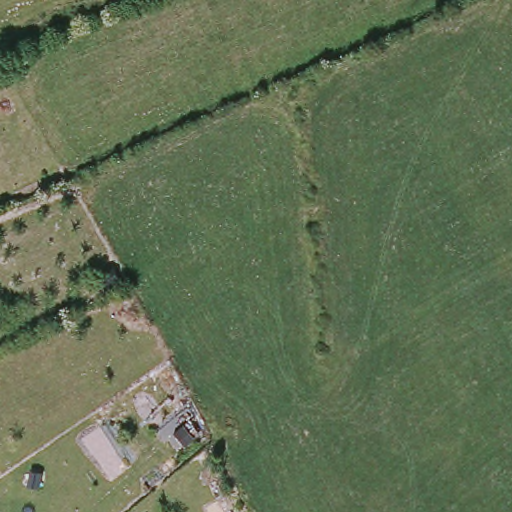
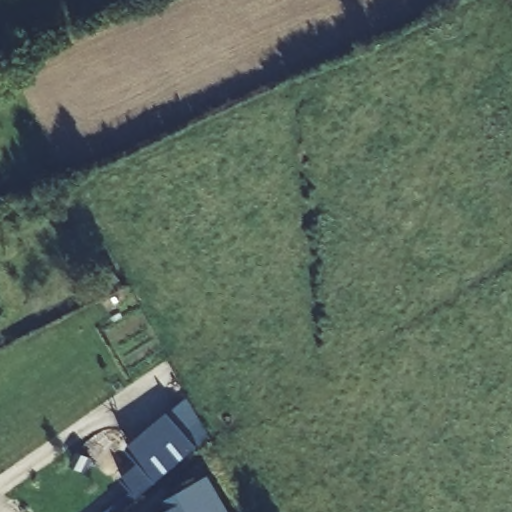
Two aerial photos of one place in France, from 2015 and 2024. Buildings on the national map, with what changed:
new [(140,498),(121,476),(140,459),(129,445),(186,396),(210,436),(140,498)]
new [(231,512),(173,512),(166,499),(210,474),(231,512)]
new [(174,512),(161,512),(170,507),(174,512)]

